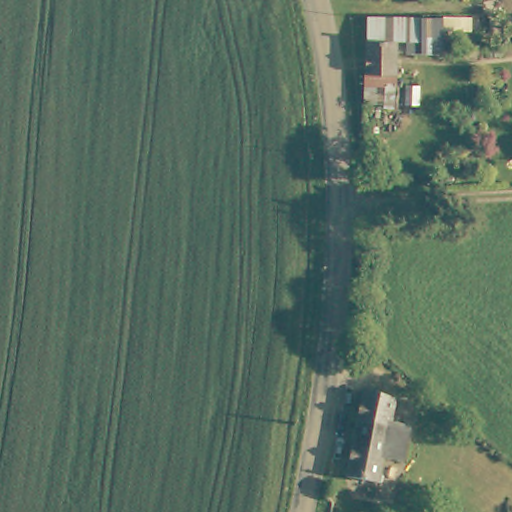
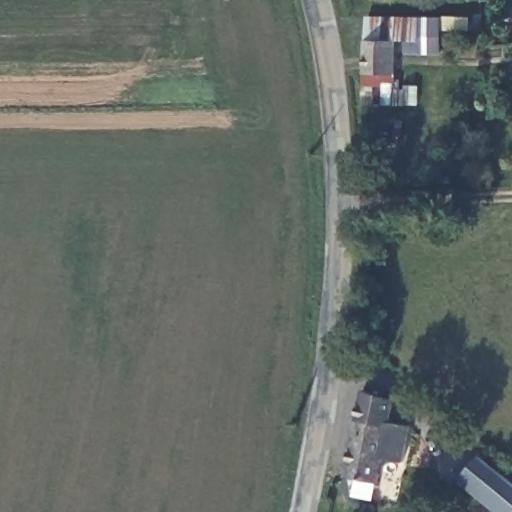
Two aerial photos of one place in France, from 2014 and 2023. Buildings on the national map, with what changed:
unchanged [(367,16),(470,17),(470,30),(445,30),(443,56),(409,54),(409,40),(399,39),(396,87),(375,88),(376,103),(362,104),(367,16)]
unchanged [(406,460),(384,456),(383,481),(349,475),(362,390),(394,400),(390,422),(411,426),(406,460)]
new [(497,512),(460,481),(480,456),(512,482),(512,512),(497,512)]

